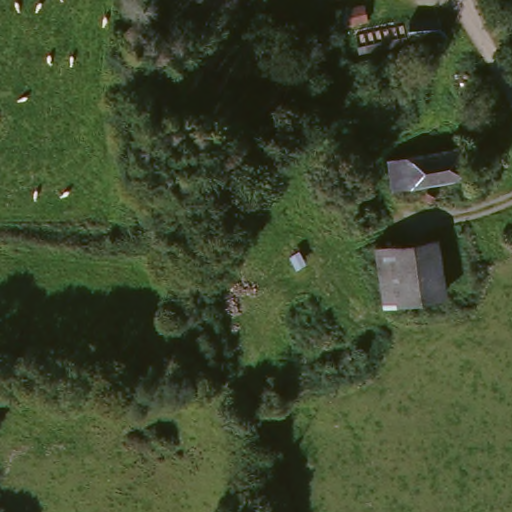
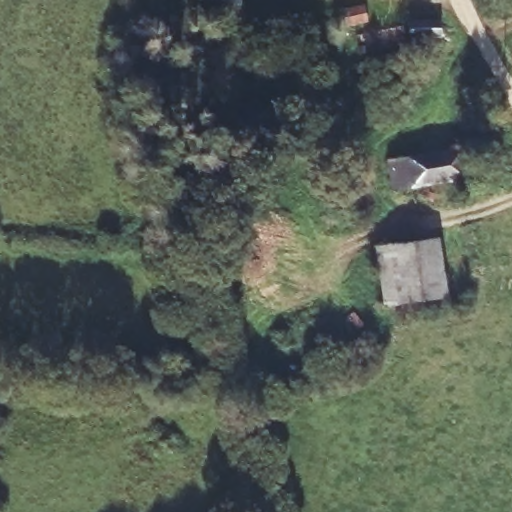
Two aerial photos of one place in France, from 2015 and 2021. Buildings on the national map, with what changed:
unchanged [(246,0),(257,0),(256,1),(246,0)]
unchanged [(316,0),(333,0),(317,4),(316,0)]
unchanged [(444,30),(410,34),(407,14),(441,10),(444,30)]
unchanged [(467,185),(396,199),(389,164),(460,150),(467,185)]
unchanged [(390,313),(379,253),(430,244),(441,304),(390,313)]

